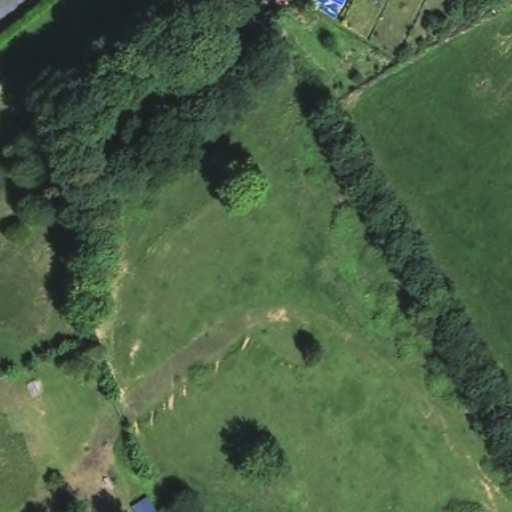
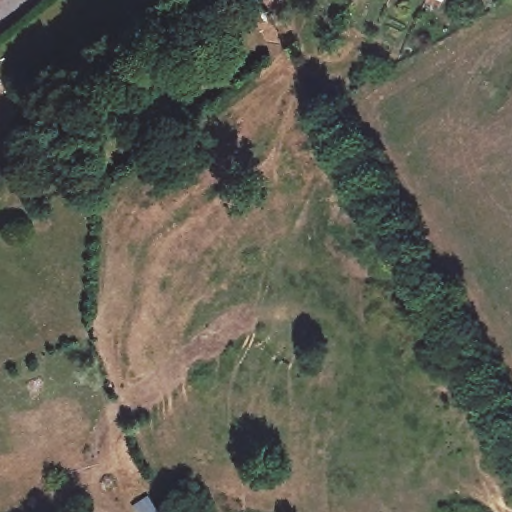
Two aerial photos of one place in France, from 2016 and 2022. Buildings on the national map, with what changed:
[]

